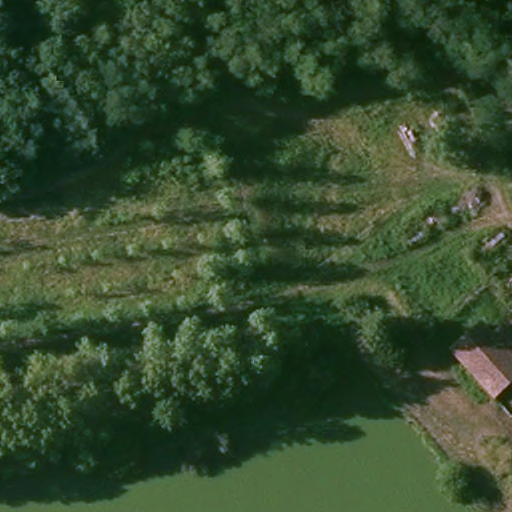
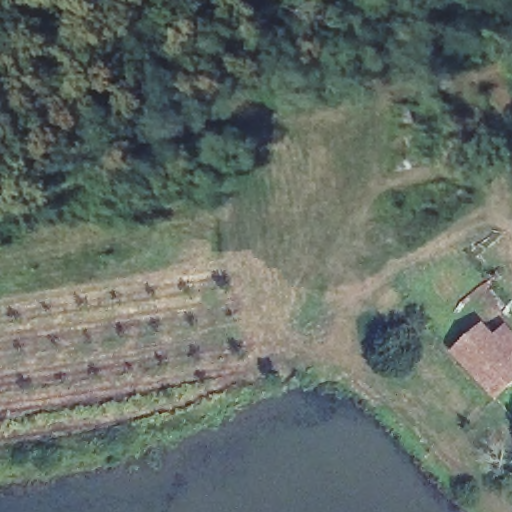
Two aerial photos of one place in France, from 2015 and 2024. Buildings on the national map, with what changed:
unchanged [(512,339),(512,391),(508,395),(472,349),(502,326),(512,339)]

